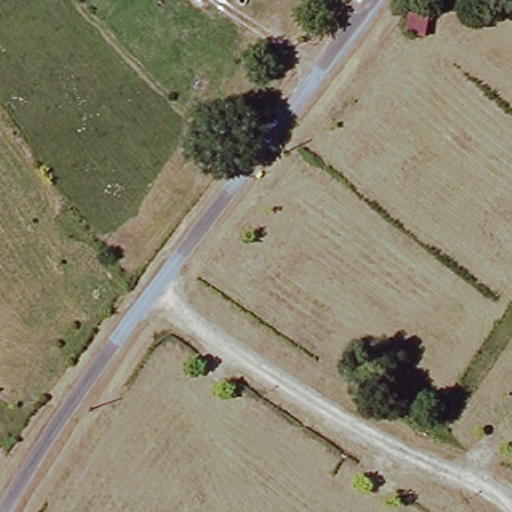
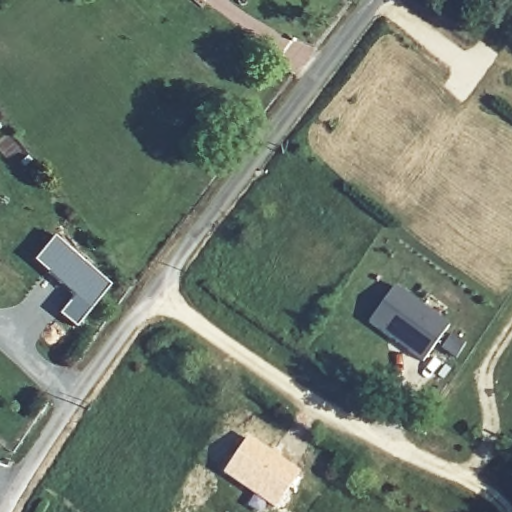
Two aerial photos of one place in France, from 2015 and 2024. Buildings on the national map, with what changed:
unchanged [(413,29),(393,25),(398,5),(418,9),(413,29)]
new [(55,233),(111,285),(77,326),(60,312),(74,295),(33,258),(55,233)]
new [(367,323),(395,285),(450,323),(422,360),(367,323)]
new [(249,435),(300,470),(274,510),(221,472),(249,435)]

